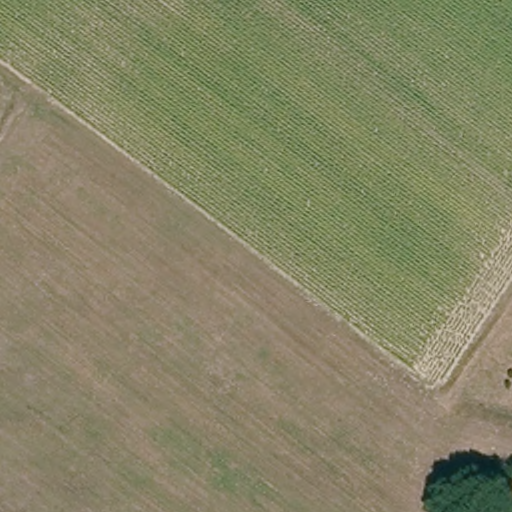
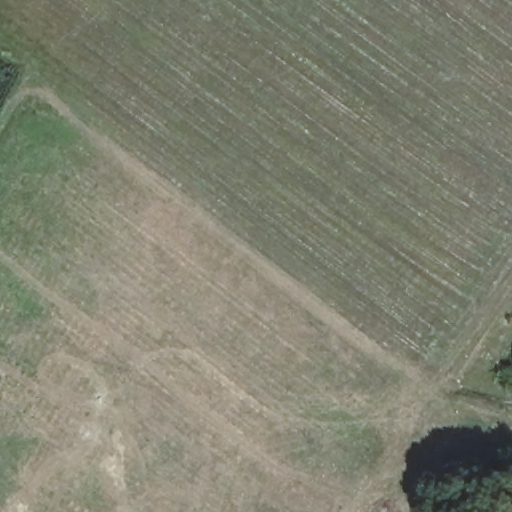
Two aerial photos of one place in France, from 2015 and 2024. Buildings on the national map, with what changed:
[]

